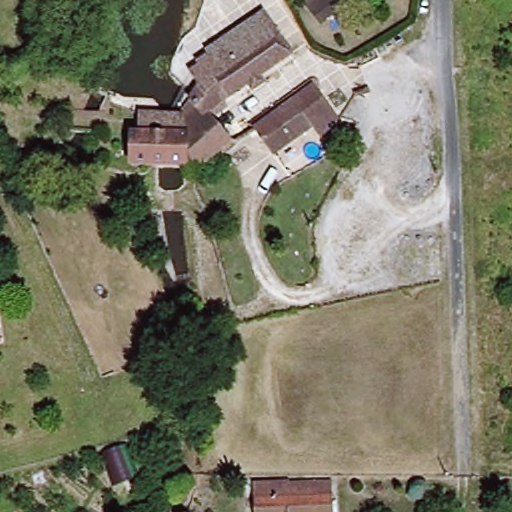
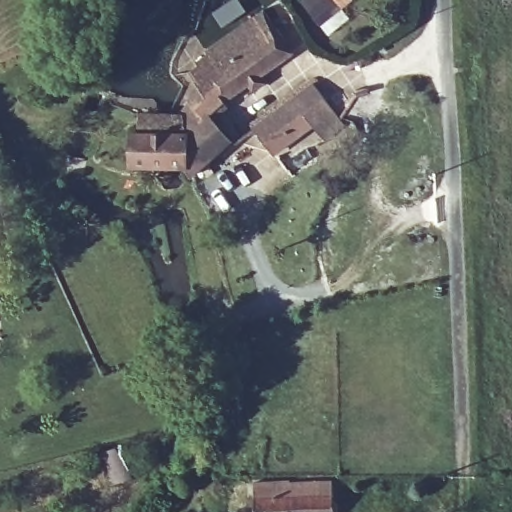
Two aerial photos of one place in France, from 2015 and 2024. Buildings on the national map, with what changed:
unchanged [(179,101),(205,83),(192,67),(204,58),(202,52),(264,7),(293,53),(208,114),(197,116),(177,115),(179,101)]
unchanged [(333,115),(312,134),(304,124),(267,152),(249,129),(307,82),(333,115)]
unchanged [(148,113),(177,115),(197,116),(208,114),(220,144),(184,176),(179,178),(180,167),(181,135),(136,133),(136,109),(148,113)]
unchanged [(181,135),(180,167),(126,167),(126,132),(136,133),(181,135)]
unchanged [(251,483),(328,480),(329,512),(252,512),(251,483)]

